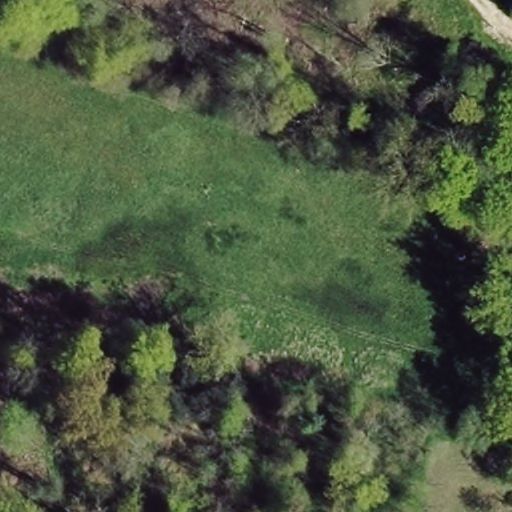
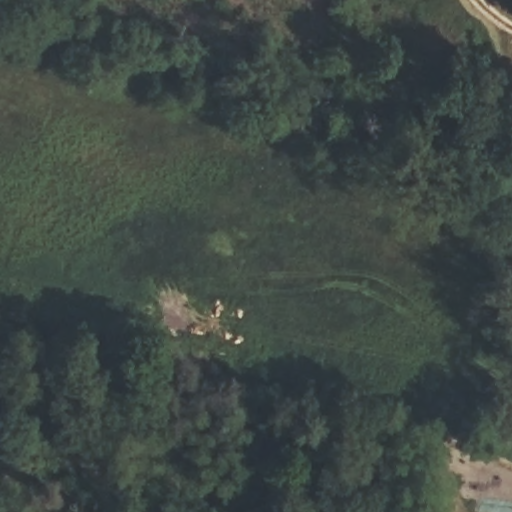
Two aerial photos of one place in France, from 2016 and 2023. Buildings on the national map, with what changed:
unchanged [(444,31),(442,49),(453,51),(446,97),(366,83),(375,21),(444,31)]

